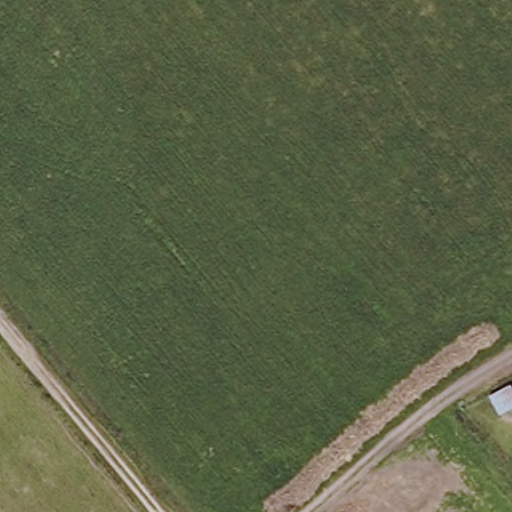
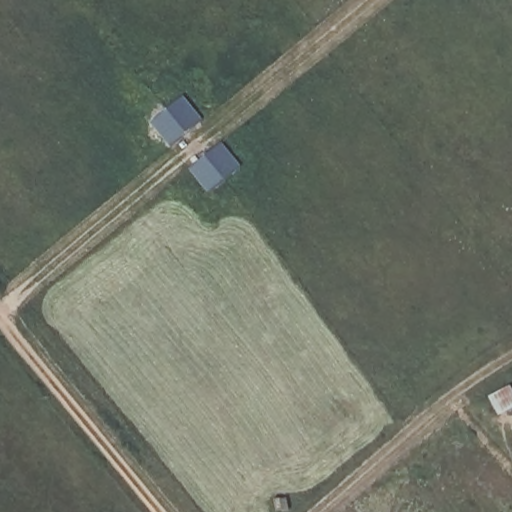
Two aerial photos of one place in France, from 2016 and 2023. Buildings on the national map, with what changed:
new [(187,99),(207,124),(176,150),(155,125),(187,99)]
new [(225,145),(244,169),(214,194),(194,171),(225,145)]
unchanged [(512,413),(499,418),(490,397),(512,389),(512,413)]

